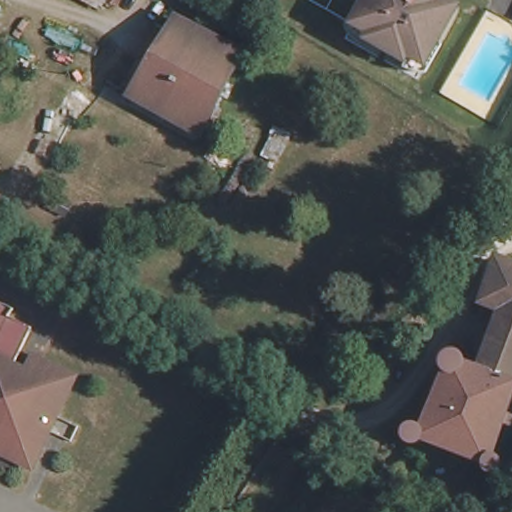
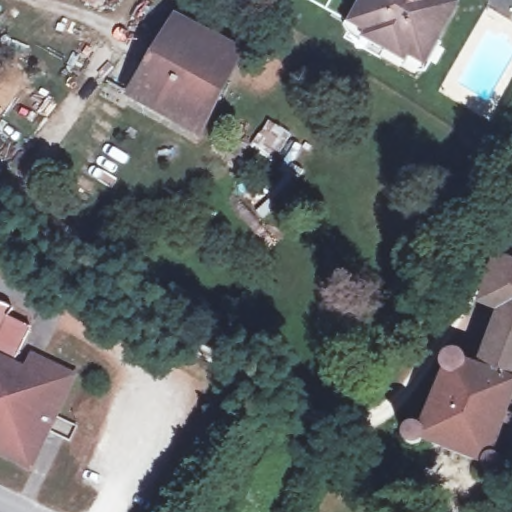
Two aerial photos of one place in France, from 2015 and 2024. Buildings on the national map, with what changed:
unchanged [(100,16),(69,0),(108,0),(100,16)]
unchanged [(416,60),(388,45),(393,35),(377,27),(372,36),(345,21),(357,0),(440,0),(447,4),(416,60)]
unchanged [(236,51),(234,56),(196,131),(130,92),(174,22),(236,51)]
unchanged [(443,369),(442,365),(444,358),(447,355),(451,353),(454,353),(458,354),(462,358),(465,363),(478,368),(503,310),(485,300),(505,261),(512,265),(512,413),(511,415),(512,415),(512,425),(508,424),(498,453),(501,453),(505,454),(508,455),(510,458),(512,462),(511,466),(510,470),(508,472),(505,475),(501,475),(497,474),(495,472),(492,470),(491,467),(491,464),(430,441),(426,445),(421,445),(416,445),(413,442),(411,440),(410,436),(410,431),(412,428),(416,425),(420,424),(425,425),(445,371),(443,369)]
unchanged [(10,313),(32,325),(15,362),(25,368),(32,353),(73,374),(56,411),(49,427),(33,460),(0,445),(0,295),(14,303),(10,313)]

